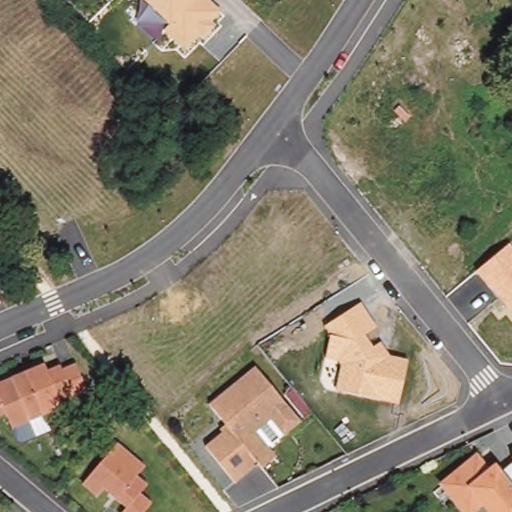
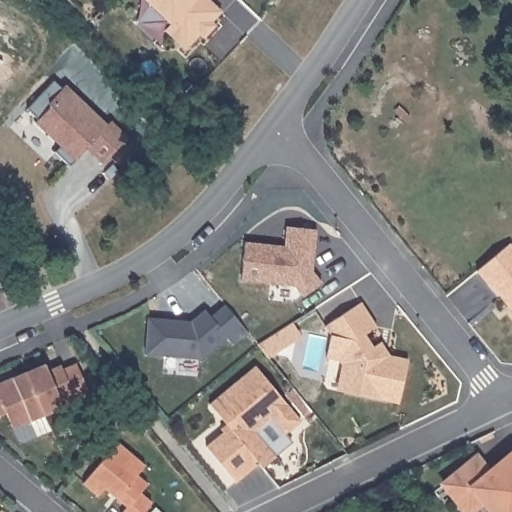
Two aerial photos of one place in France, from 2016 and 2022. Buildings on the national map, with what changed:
unchanged [(220,32),(224,35),(212,47),(208,44),(194,59),(174,40),(179,34),(149,5),(153,0),(208,0),(230,22),(220,32)]
new [(55,81),(63,89),(66,86),(109,125),(112,122),(128,137),(103,164),(85,146),(81,151),(83,152),(70,167),(55,152),(61,147),(36,123),(38,120),(28,110),(55,81)]
new [(285,247),(287,227),(317,230),(314,251),(312,271),(321,282),(303,297),(294,286),(241,280),(245,242),(285,247)]
unchanged [(512,246),(512,315),(475,271),(509,242),(512,246)]
unchanged [(378,327),(365,334),(372,347),(382,342),(391,357),(408,360),(398,405),(335,389),(341,366),(337,361),(327,359),(331,333),(324,325),(360,302),(378,327)]
new [(181,320),(190,320),(204,308),(210,316),(224,303),(247,332),(232,344),(226,337),(201,358),(144,353),(147,317),(181,320)]
unchanged [(44,362),(46,370),(60,364),(61,368),(76,362),(87,390),(73,395),(75,400),(43,413),(34,392),(25,371),(44,362)]
unchanged [(300,418),(268,445),(276,453),(261,465),(258,461),(235,480),(205,444),(222,430),(220,427),(226,422),(209,402),(255,363),(300,418)]
unchanged [(5,412),(0,414),(0,381),(25,371),(34,392),(43,413),(12,427),(5,412)]
unchanged [(151,501),(141,512),(121,512),(126,506),(116,496),(117,495),(106,485),(97,495),(83,482),(116,441),(145,464),(136,473),(146,482),(141,489),(139,491),(151,501)]
unchanged [(484,509),(480,512),(460,512),(439,485),(477,454),(487,467),(496,462),(503,471),(512,464),(512,512),(486,512),(484,509)]
unchanged [(510,457),(512,455),(512,460),(510,457)]

